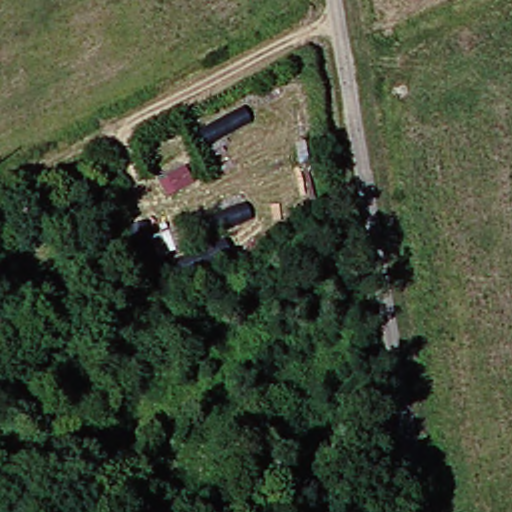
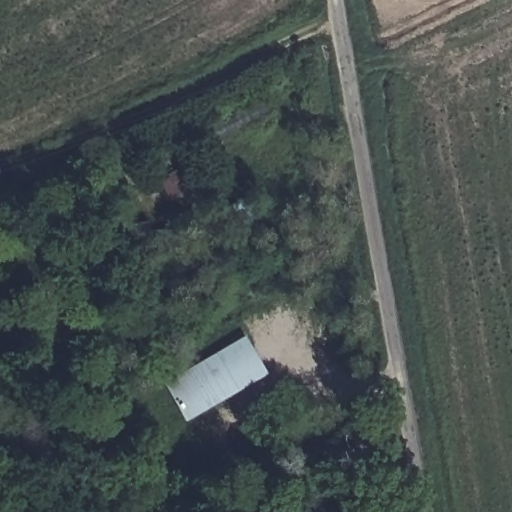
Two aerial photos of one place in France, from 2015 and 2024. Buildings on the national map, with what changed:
new [(187,421),(165,383),(246,337),(267,373),(187,421)]

